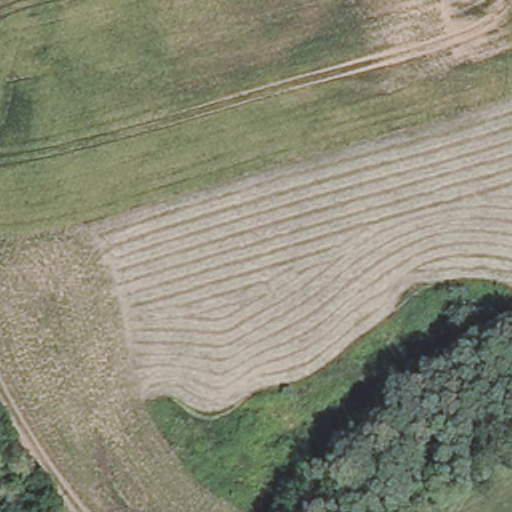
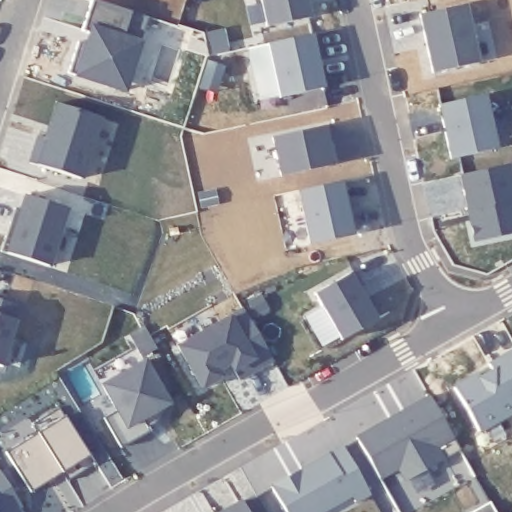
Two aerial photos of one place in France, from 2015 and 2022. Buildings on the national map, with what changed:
new [(309,19),(266,28),(261,0),(306,0),(309,19)]
new [(113,88),(73,75),(82,45),(86,33),(96,3),(151,20),(133,74),(127,93),(113,88)]
new [(424,18),(468,8),(481,67),(436,76),(424,18)]
new [(314,34),(325,87),(281,96),(271,44),(314,34)]
new [(488,96),(499,149),(452,158),(441,106),(488,96)]
new [(102,118),(81,180),(35,166),(38,160),(28,160),(36,134),(44,134),(55,103),(102,118)]
new [(329,126),(336,164),(283,176),(275,137),(329,126)]
new [(512,233),(477,242),(461,174),(507,165),(512,187),(512,233)]
new [(356,239),(314,247),(303,194),(344,185),(356,239)]
new [(68,209),(50,269),(3,254),(22,193),(68,209)]
new [(348,204),(353,203),(356,218),(351,219),(348,204)]
new [(356,269),(364,282),(358,284),(378,320),(341,342),(313,294),(351,271),(356,269)]
new [(23,301),(16,321),(2,368),(0,367),(0,294),(23,301)]
new [(244,307),(273,361),(240,380),(237,369),(202,390),(176,344),(230,314),(244,307)]
new [(161,352),(146,360),(133,338),(148,330),(161,352)]
new [(457,391),(480,378),(482,382),(495,374),(492,368),(512,356),(512,417),(482,435),(457,391)]
new [(172,407),(165,411),(168,416),(155,424),(158,428),(151,431),(153,435),(124,451),(107,421),(120,414),(105,388),(148,364),(172,407)]
new [(460,449),(445,458),(404,482),(398,470),(379,480),(354,435),(428,394),(460,449)]
new [(94,460),(68,480),(67,477),(57,483),(54,476),(30,490),(0,441),(0,432),(28,415),(33,424),(59,407),(94,460)]
new [(331,512),(287,512),(274,491),(295,479),(304,474),(346,450),(373,497),(358,505),(354,499),(331,512)]
new [(24,509),(18,512),(0,512),(0,474),(2,473),(24,509)]
new [(219,512),(241,499),(249,512),(219,512)]
new [(496,512),(485,512),(494,507),(496,512)]

